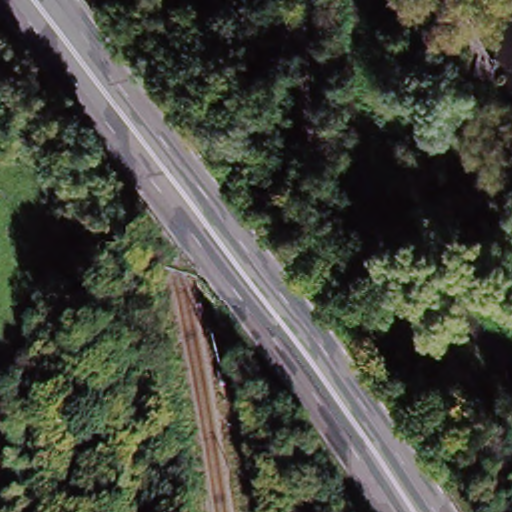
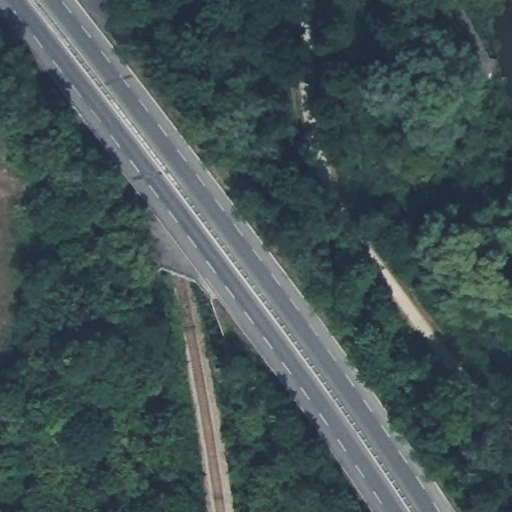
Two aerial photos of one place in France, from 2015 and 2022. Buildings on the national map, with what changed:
[]

